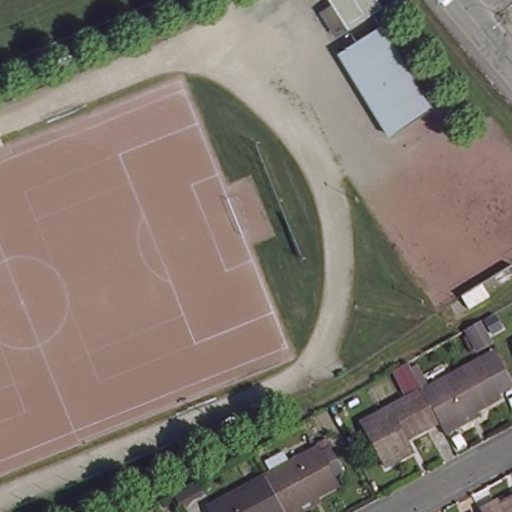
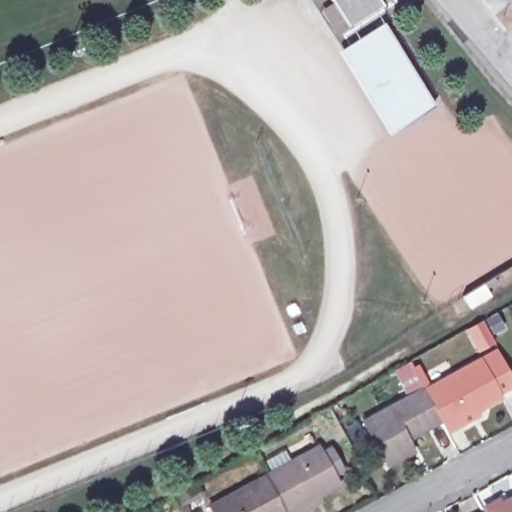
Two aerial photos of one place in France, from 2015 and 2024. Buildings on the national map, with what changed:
unchanged [(382,6),(350,23),(335,0),(379,0),(382,6)]
unchanged [(395,135),(384,116),(353,68),(343,53),(347,49),(352,46),(387,27),(397,42),(437,108),(395,135)]
unchanged [(492,338),(473,348),(462,327),(480,317),(492,338)]
unchanged [(479,361),(482,367),(497,359),(511,387),(495,395),(497,400),(458,420),(461,425),(445,434),(443,429),(438,419),(424,391),(479,361)]
unchanged [(438,419),(407,434),(413,449),(388,462),(364,416),(420,385),(424,391),(438,419)]
unchanged [(266,461),(287,451),(292,460),(322,446),(324,450),(337,442),(350,470),(338,476),(342,484),(302,505),(305,512),(285,512),(267,477),(274,474),(266,461)]
unchanged [(267,477),(285,512),(217,512),(214,505),(267,477)]
unchanged [(500,501),(505,509),(512,504),(512,512),(486,512),(485,510),(500,501)]

